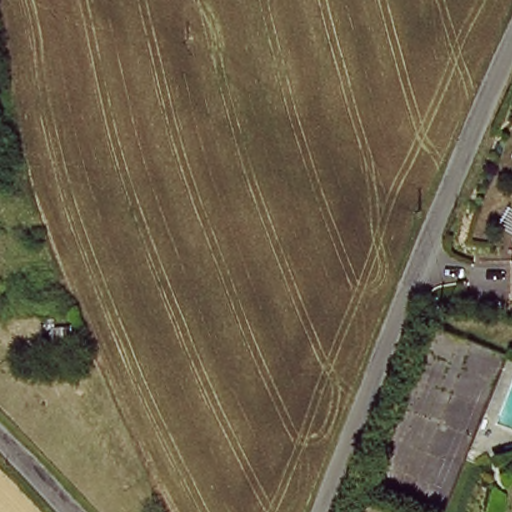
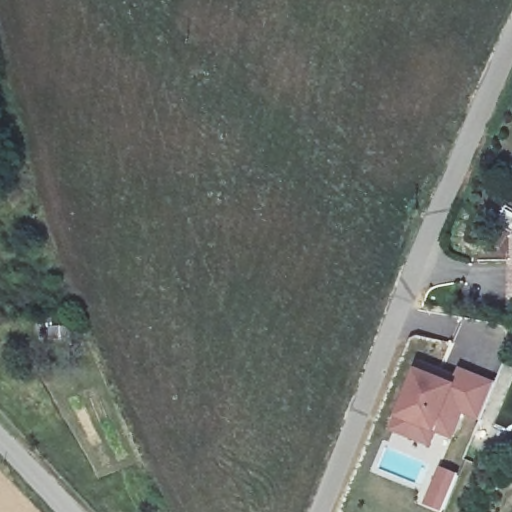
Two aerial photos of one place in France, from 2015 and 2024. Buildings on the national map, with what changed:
new [(455,375),(459,366),(466,370),(468,366),(478,370),(477,373),(495,382),(479,421),(462,415),(454,438),(438,435),(434,448),(391,432),(420,361),(455,375)]

